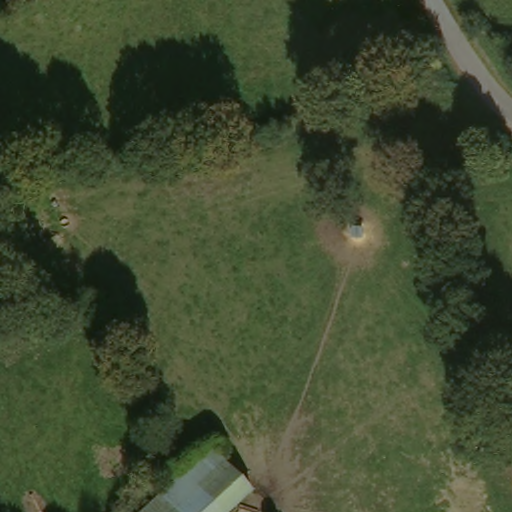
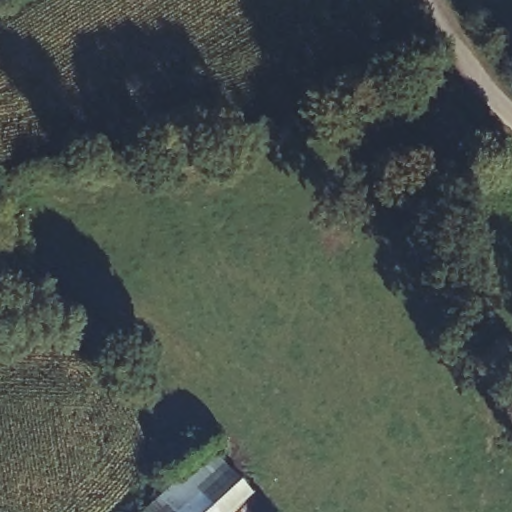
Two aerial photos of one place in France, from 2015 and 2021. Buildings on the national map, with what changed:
unchanged [(210,446),(256,491),(236,512),(142,512),(182,475),(210,446)]

